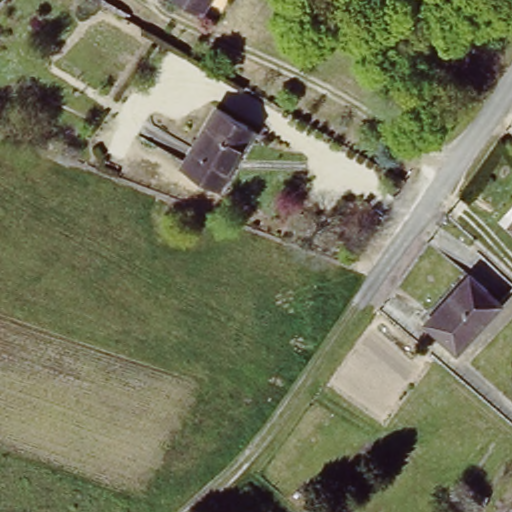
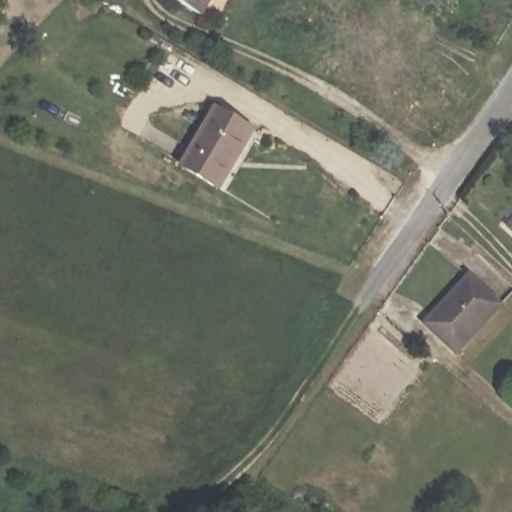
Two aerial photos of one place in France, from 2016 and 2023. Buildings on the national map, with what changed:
unchanged [(204,5),(198,16),(176,0),(207,0),(204,5)]
unchanged [(260,132),(217,194),(180,166),(223,105),(260,132)]
unchanged [(511,222),(512,220),(512,223),(511,222)]
unchanged [(467,271),(504,299),(463,354),(427,326),(467,271)]

